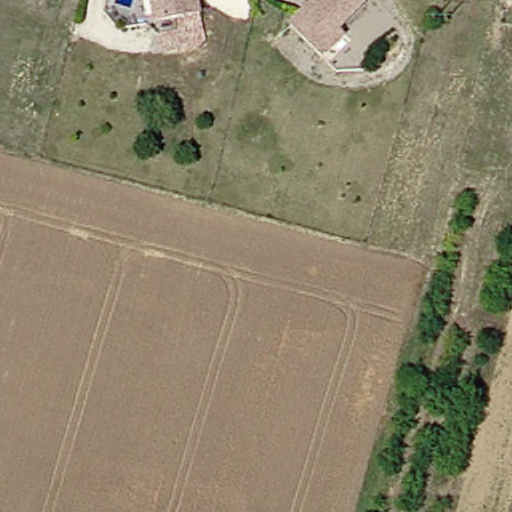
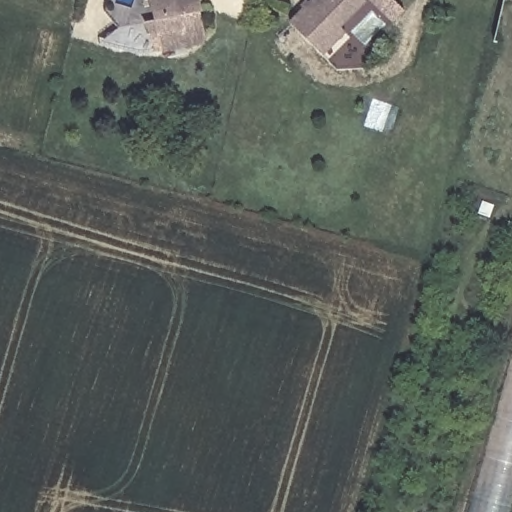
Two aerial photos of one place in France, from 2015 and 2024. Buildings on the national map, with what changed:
unchanged [(196,0),(198,11),(175,16),(153,20),(150,0),(196,0)]
unchanged [(350,25),(320,55),(289,23),(313,0),(362,0),(365,3),(345,19),(350,25)]
unchanged [(201,33),(196,40),(159,48),(156,30),(177,26),(175,16),(198,11),(201,33)]
new [(512,359),(512,501),(509,512),(470,512),(512,359)]

